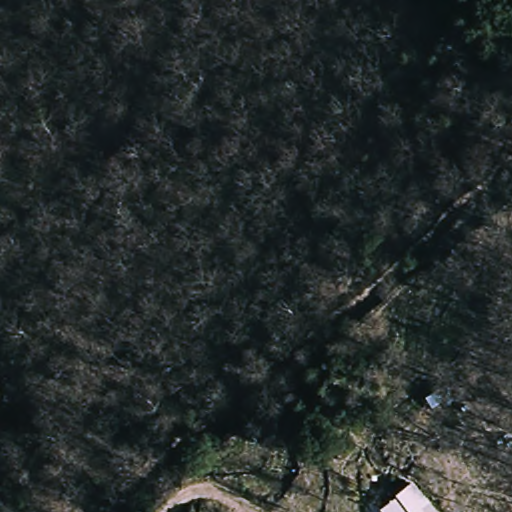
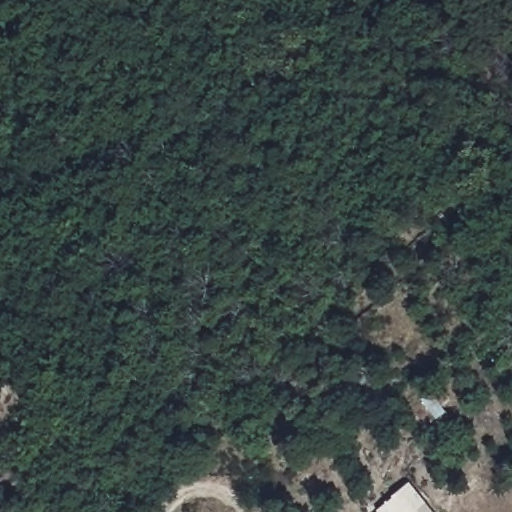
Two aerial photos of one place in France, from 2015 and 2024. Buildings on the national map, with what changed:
unchanged [(376,512),(384,505),(410,483),(434,512),(377,512),(376,512)]

